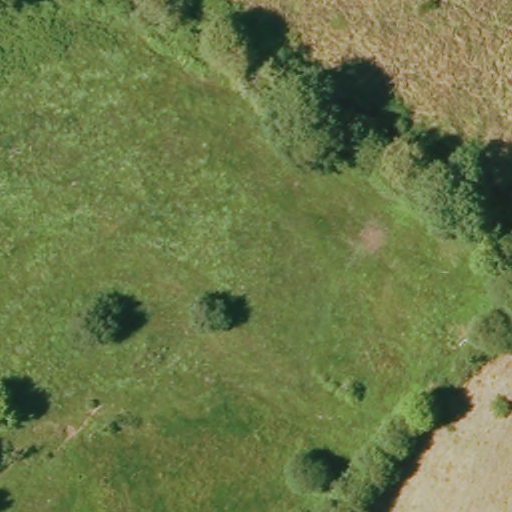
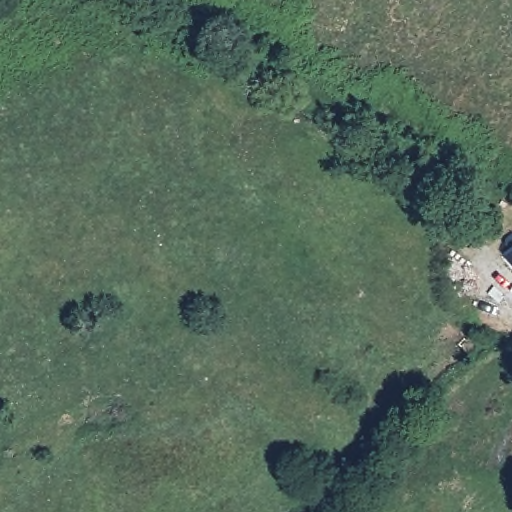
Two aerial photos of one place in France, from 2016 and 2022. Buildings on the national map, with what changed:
unchanged [(512,245),(512,257),(506,249),(512,245)]

